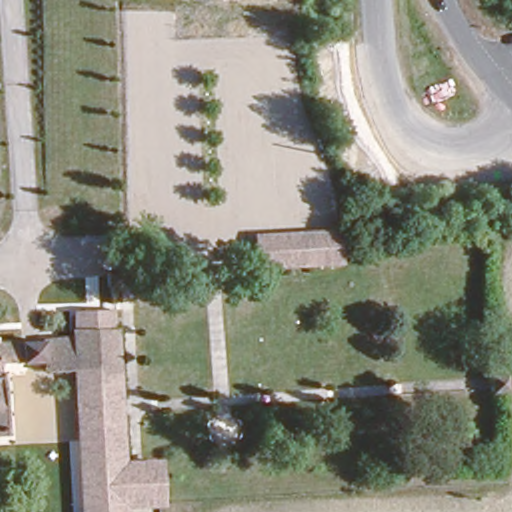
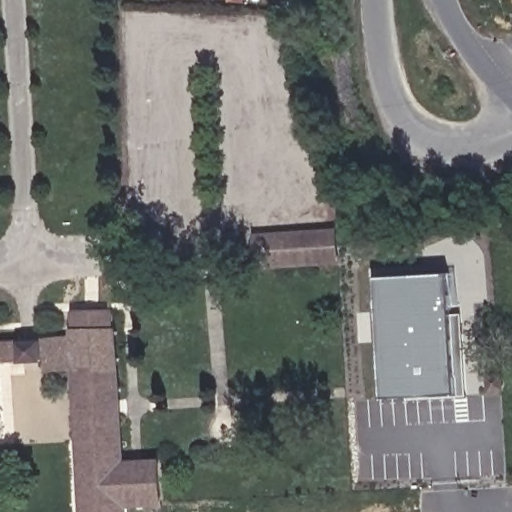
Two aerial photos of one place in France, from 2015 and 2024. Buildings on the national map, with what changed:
new [(254,269),(252,233),(338,229),(341,264),(254,269)]
unchanged [(110,283),(110,271),(125,270),(125,282),(110,283)]
new [(448,273),(454,394),(376,397),(373,277),(448,273)]
unchanged [(105,328),(74,329),(71,311),(115,309),(124,459),(160,457),(163,507),(129,509),(129,512),(81,512),(75,365),(106,363),(105,328)]
unchanged [(36,367),(36,355),(29,355),(0,356),(0,341),(29,340),(36,340),(36,331),(74,329),(105,328),(106,363),(75,365),(36,367)]
unchanged [(489,375),(504,374),(505,387),(490,388),(489,375)]

